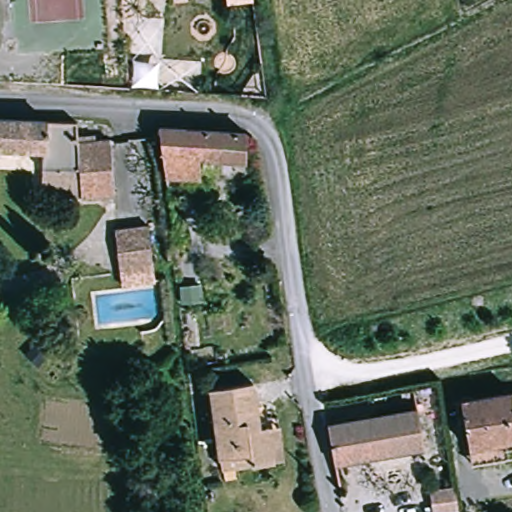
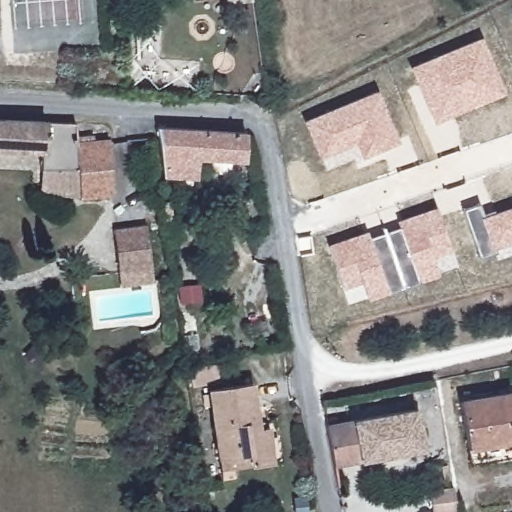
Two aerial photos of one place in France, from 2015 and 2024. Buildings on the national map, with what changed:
new [(409,67),(481,36),(505,93),(433,124),(409,67)]
new [(354,144),(320,159),(303,121),(377,90),(399,141),(361,159),(354,144)]
unchanged [(80,139),(97,138),(97,145),(113,144),(117,198),(83,200),(82,172),(45,173),(45,152),(0,151),(0,124),(79,127),(80,139)]
unchanged [(247,158),(200,155),(202,176),(174,175),(176,195),(168,195),(160,125),(249,129),(247,158)]
unchanged [(83,200),(43,201),(45,173),(82,172),(83,200)]
new [(494,210),(494,212),(512,206),(512,242),(494,249),(496,253),(480,258),(462,209),(479,203),(482,214),(494,210)]
new [(369,238),(400,228),(397,220),(435,207),(449,249),(429,256),(437,275),(367,299),(361,282),(342,289),(326,245),(368,230),(369,238)]
unchanged [(123,289),(122,279),(117,232),(150,228),(155,275),(157,285),(123,289)]
unchanged [(216,457),(206,391),(249,384),(255,425),(264,424),(274,422),(280,459),(270,461),(247,464),(218,469),(216,457)]
unchanged [(469,447),(460,399),(512,390),(512,457),(473,464),(469,447)]
unchanged [(413,408),(420,445),(336,462),(329,424),(413,408)]
unchanged [(451,485),(455,509),(436,512),(430,512),(426,488),(451,485)]

